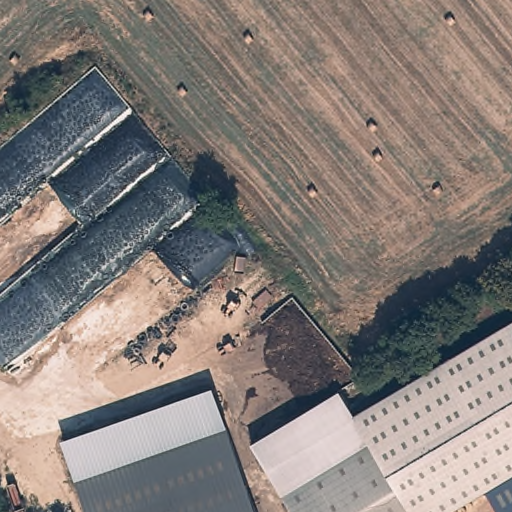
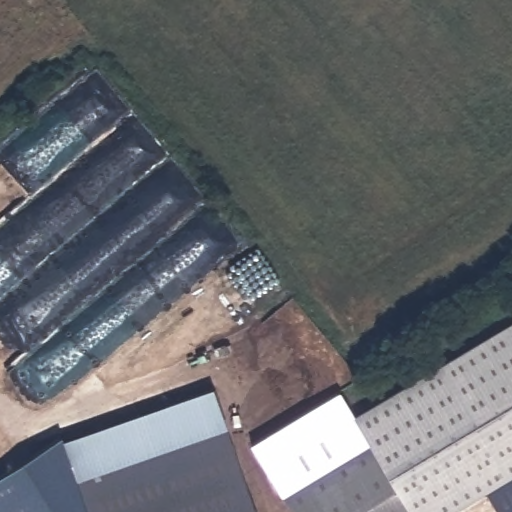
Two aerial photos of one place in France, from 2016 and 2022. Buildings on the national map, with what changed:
unchanged [(482,485),(431,512),(404,512),(400,503),(350,408),(512,322),(512,469),(482,485)]
unchanged [(76,477),(62,435),(225,380),(240,425),(76,477)]
unchanged [(290,512),(247,430),(336,383),(350,408),(400,503),(382,512),(290,512)]
unchanged [(106,512),(88,512),(76,477),(240,425),(269,512),(217,512),(181,468),(106,512)]
new [(76,477),(88,512),(0,512),(0,476),(62,435),(76,477)]
unchanged [(217,512),(106,512),(181,468),(217,512)]
unchanged [(512,469),(512,512),(500,512),(482,485),(493,479),(512,469)]

